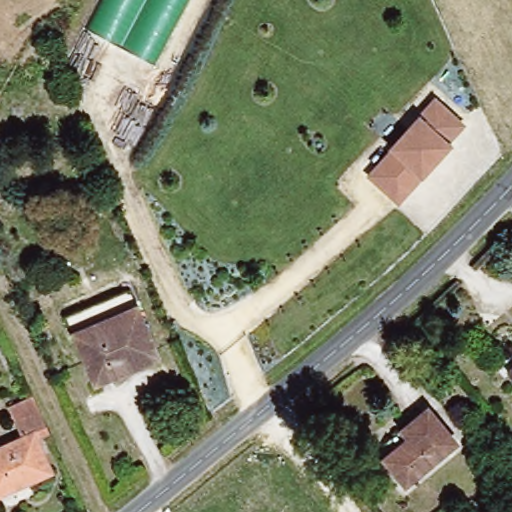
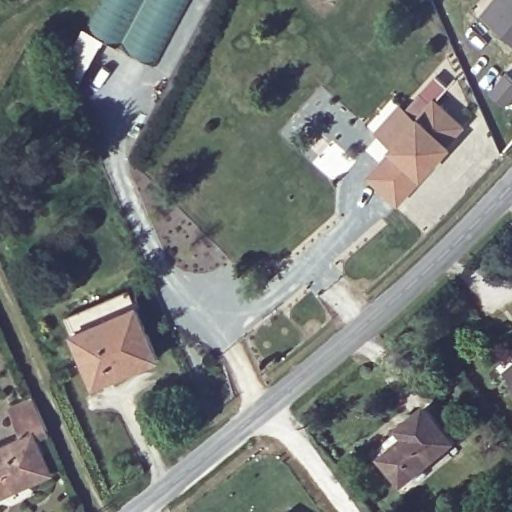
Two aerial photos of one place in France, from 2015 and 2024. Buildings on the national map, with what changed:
unchanged [(154,63),(86,29),(102,0),(186,0),(154,63)]
new [(490,0),(512,0),(512,36),(481,11),(490,0)]
unchanged [(467,124),(450,143),(422,176),(398,202),(365,173),(431,96),(467,124)]
unchanged [(129,289),(136,305),(73,332),(66,316),(129,289)]
unchanged [(157,355),(94,383),(73,332),(136,305),(157,355)]
unchanged [(507,372),(512,368),(512,378),(507,372)]
unchanged [(9,405),(32,395),(50,432),(36,438),(51,471),(0,494),(0,447),(23,436),(9,405)]
unchanged [(404,428),(431,406),(461,441),(409,484),(387,456),(411,436),(404,428)]

